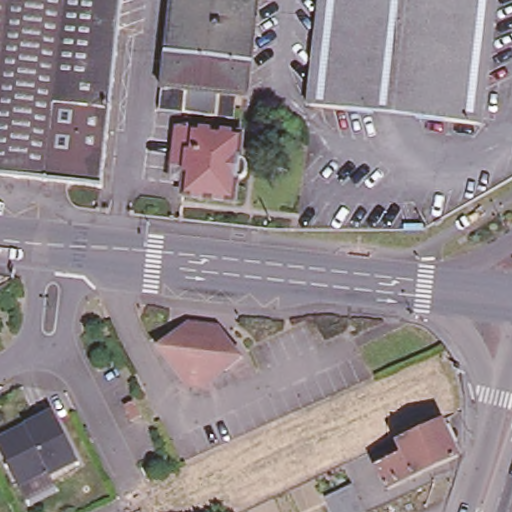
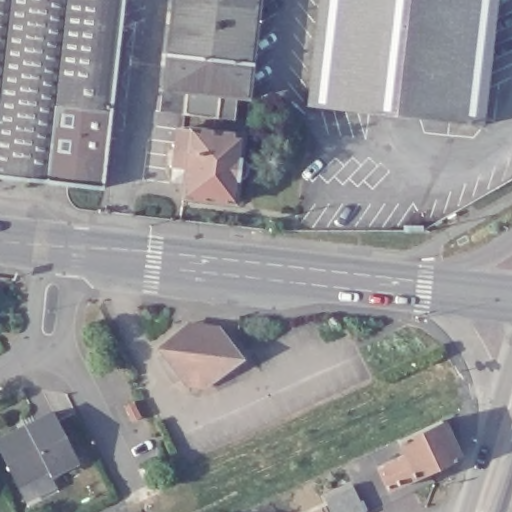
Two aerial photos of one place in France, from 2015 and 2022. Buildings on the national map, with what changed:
unchanged [(99,187),(0,177),(0,0),(121,0),(99,187)]
unchanged [(216,117),(181,113),(158,110),(161,88),(169,0),(256,0),(246,98),(235,98),(233,120),(216,117)]
unchanged [(481,120),(306,100),(317,0),(494,0),(481,120)]
unchanged [(183,169),(169,168),(171,143),(178,144),(179,130),(213,133),(214,120),(243,123),(241,136),(240,136),(238,159),(244,165),(244,170),(241,175),(236,179),(233,202),(181,197),(183,169)]
unchanged [(186,379),(157,344),(176,329),(188,319),(216,321),(223,330),(241,352),(203,381),(186,379)]
unchanged [(133,402),(139,418),(130,422),(123,406),(133,402)]
unchanged [(16,487),(0,453),(0,438),(24,426),(52,412),(78,462),(49,476),(55,487),(24,502),(16,487)]
unchanged [(371,464),(399,450),(394,437),(433,417),(437,418),(438,422),(442,421),(446,423),(451,435),(444,438),(452,452),(439,458),(410,471),(381,485),(371,464)]
unchanged [(353,485),(361,502),(365,512),(332,512),(325,498),(353,485)]

